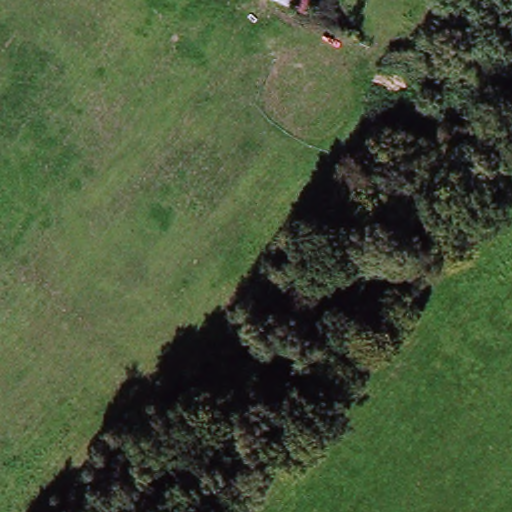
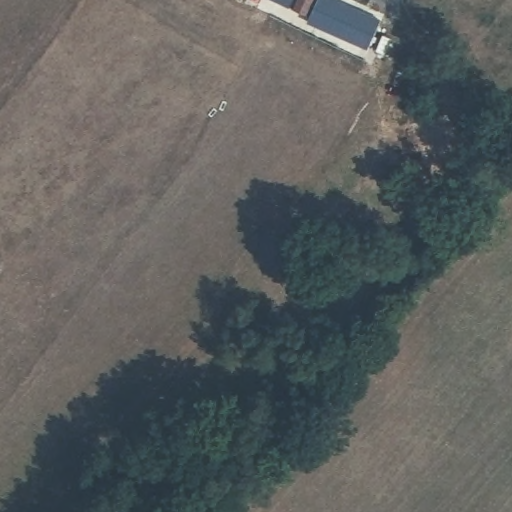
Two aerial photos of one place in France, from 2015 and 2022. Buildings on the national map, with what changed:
unchanged [(267,0),(285,0),(282,8),(267,0)]
new [(367,48),(307,21),(317,0),(337,0),(380,19),(367,48)]

